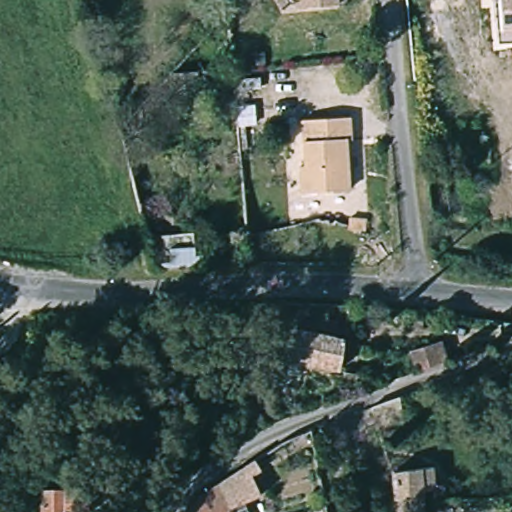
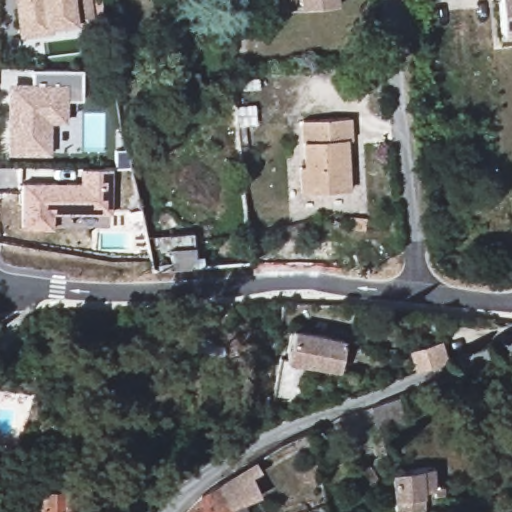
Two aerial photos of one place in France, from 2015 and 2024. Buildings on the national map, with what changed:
new [(14,0),(89,0),(92,22),(70,27),(69,24),(50,27),(52,33),(20,38),(14,0)]
unchanged [(304,0),(338,0),(338,8),(305,10),(304,0)]
unchanged [(496,0),(512,0),(512,32),(497,34),(496,0)]
new [(18,97),(18,88),(30,88),(30,72),(80,71),(80,102),(64,103),(65,123),(48,123),(49,156),(10,156),(8,97),(18,97)]
unchanged [(198,75),(200,100),(176,101),(175,75),(198,75)]
unchanged [(301,193),(300,167),(304,167),(303,123),(352,121),(353,139),(349,139),(351,191),(301,193)]
new [(76,178),(76,163),(106,162),(107,208),(50,209),(50,224),(20,225),(19,179),(76,178)]
unchanged [(196,236),(197,261),(155,264),(152,234),(196,236)]
unchanged [(350,345),(342,374),(287,364),(291,334),(350,345)]
unchanged [(428,370),(422,350),(450,340),(458,359),(428,370)]
unchanged [(417,418),(389,427),(382,403),(408,393),(417,418)]
unchanged [(201,493),(211,487),(257,461),(260,470),(240,481),(221,490),(231,512),(182,512),(201,493)]
unchanged [(417,512),(392,512),(391,469),(416,469),(428,469),(428,489),(440,490),(440,499),(416,501),(417,512)]
unchanged [(253,512),(231,512),(221,490),(240,481),(253,512)]
unchanged [(82,484),(80,510),(56,508),(56,512),(35,512),(36,482),(46,483),(57,483),(82,484)]

